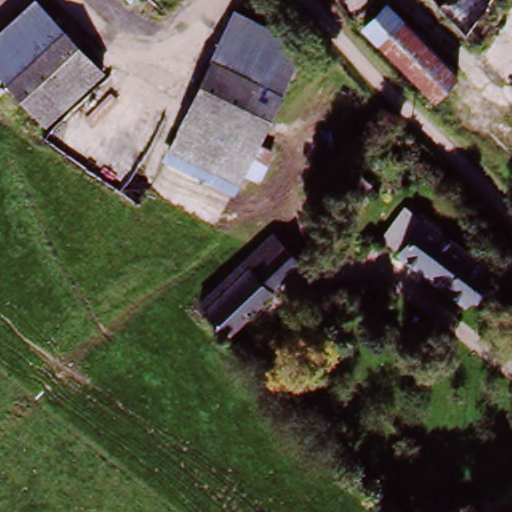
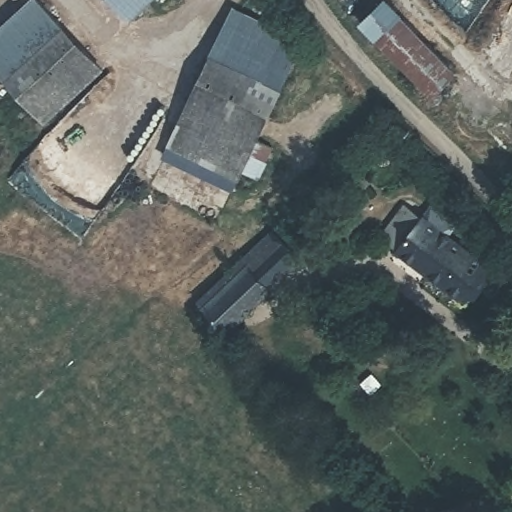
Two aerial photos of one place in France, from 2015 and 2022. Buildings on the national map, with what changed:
unchanged [(0,36),(38,0),(41,0),(63,24),(93,56),(35,110),(8,82),(0,74),(0,36)]
new [(114,0),(152,0),(132,19),(114,0)]
unchanged [(460,75),(436,98),(365,24),(387,1),(460,75)]
unchanged [(235,8),(303,40),(282,85),(214,51),(235,8)]
unchanged [(246,163),(238,179),(170,147),(178,129),(214,51),(282,85),(258,134),(273,141),(267,155),(260,170),(246,163)]
unchanged [(350,208),(328,182),(338,173),(355,192),(361,187),(366,192),(350,208)]
unchanged [(464,301),(397,249),(398,248),(382,234),(405,206),(422,219),(488,269),(464,301)]
unchanged [(204,309),(256,262),(272,279),(277,285),(267,295),(226,333),(204,309)]
unchanged [(469,512),(440,512),(439,509),(465,500),(469,512)]

